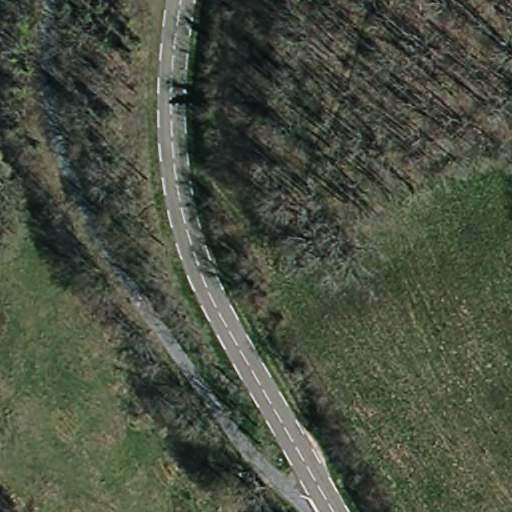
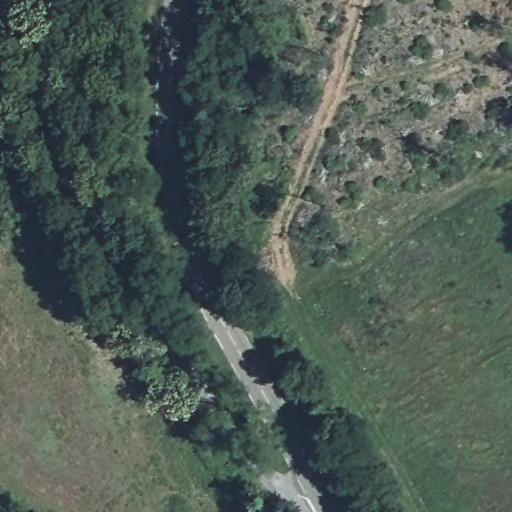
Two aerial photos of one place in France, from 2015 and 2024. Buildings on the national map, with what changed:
unchanged [(334,220),(315,231),(304,209),(324,198),(334,220)]

